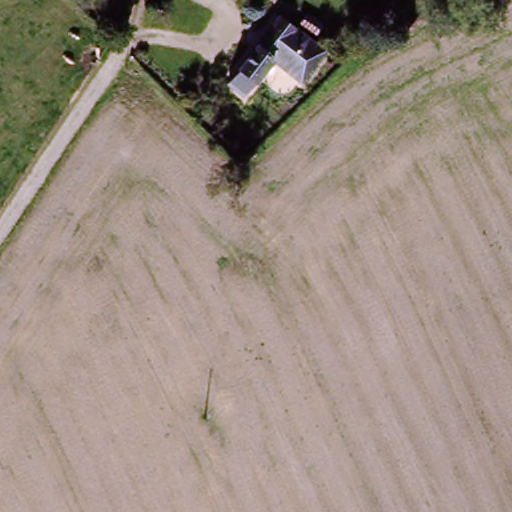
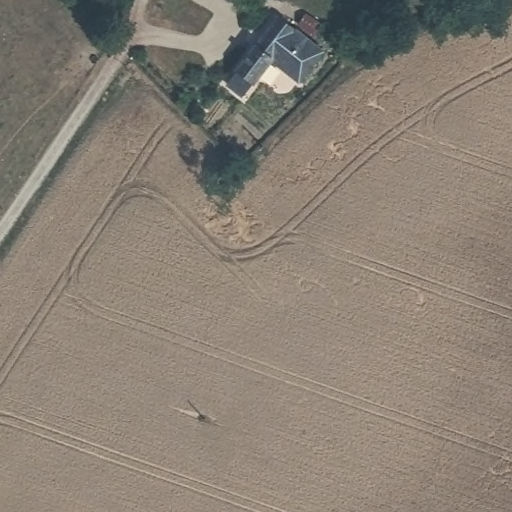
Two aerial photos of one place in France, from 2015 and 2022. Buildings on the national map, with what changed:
unchanged [(252,42),(260,48),(279,19),(325,51),(298,85),(275,64),(253,86),(235,71),(252,42)]

